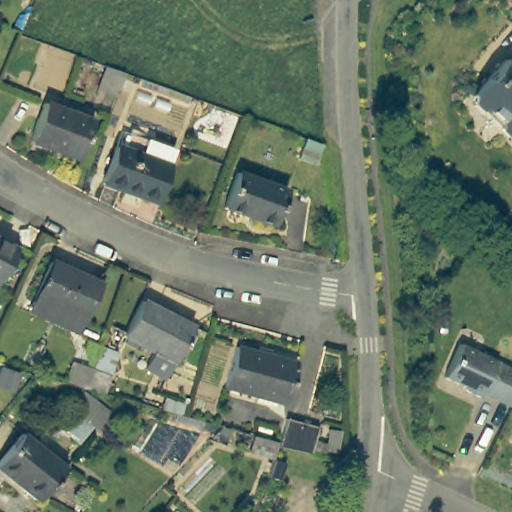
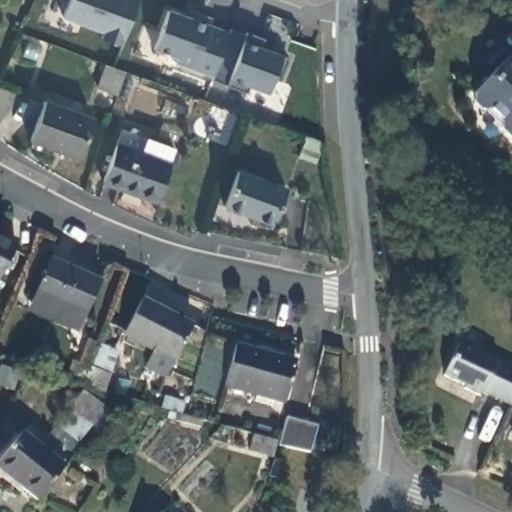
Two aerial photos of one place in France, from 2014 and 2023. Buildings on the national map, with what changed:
new [(99,39),(101,33),(62,19),(70,0),(139,0),(122,47),(99,39)]
new [(255,45),(280,55),(267,95),(249,89),(246,95),(211,82),(212,79),(175,66),(177,60),(154,51),(169,10),(183,15),(186,10),(212,20),(210,27),(228,35),(230,30),(244,37),(247,33),(256,37),(255,45)]
unchanged [(498,127),(498,120),(487,110),(480,110),(471,101),(470,94),(505,58),(512,65),(512,141),(498,127)]
unchanged [(127,66),(117,91),(100,84),(109,60),(127,66)]
unchanged [(94,114),(79,152),(30,134),(44,95),(94,114)]
unchanged [(321,140),(317,152),(302,146),(307,134),(321,140)]
unchanged [(174,155),(154,206),(102,186),(117,149),(139,157),(145,143),(174,155)]
unchanged [(292,190),(278,225),(230,207),(243,171),(292,190)]
unchanged [(0,274),(0,235),(15,244),(0,274)]
unchanged [(27,305),(33,291),(50,255),(100,279),(82,315),(77,328),(27,305)]
unchanged [(192,321),(175,358),(124,332),(142,295),(192,321)]
unchanged [(512,365),(512,398),(510,403),(482,390),(479,395),(466,388),(468,383),(445,373),(460,340),(512,365)]
unchanged [(297,360),(286,402),(225,383),(237,342),(297,360)]
unchanged [(100,386),(84,380),(66,373),(72,357),(76,359),(90,363),(107,368),(100,386)]
unchanged [(109,408),(97,422),(71,403),(84,387),(109,408)]
unchanged [(332,457),(278,448),(283,420),(337,430),(332,457)]
unchanged [(37,496),(0,466),(0,455),(22,427),(65,462),(37,496)]
unchanged [(277,437),(272,451),(249,445),(252,430),(277,437)]
unchanged [(280,472),(270,469),(275,452),(285,455),(280,472)]

